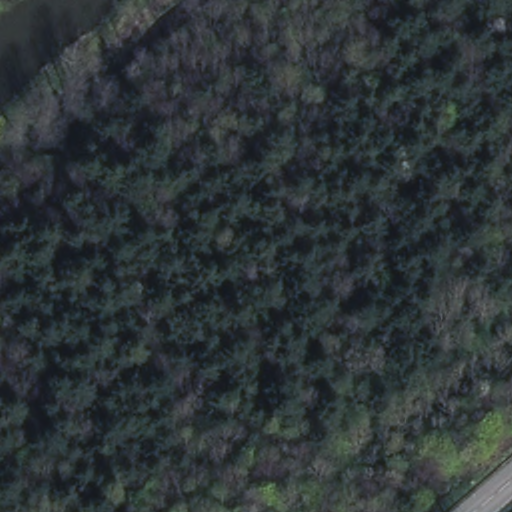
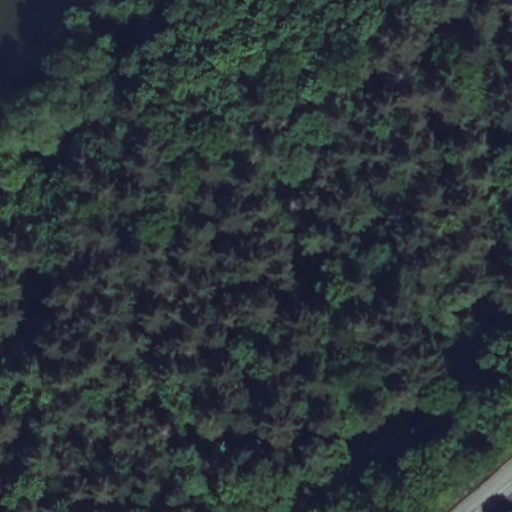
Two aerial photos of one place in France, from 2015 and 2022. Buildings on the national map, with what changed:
[]

